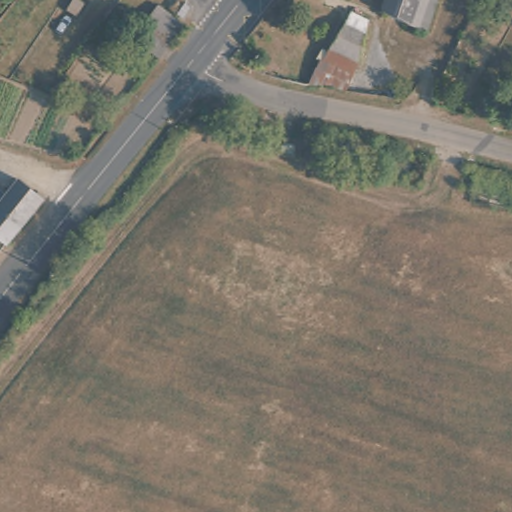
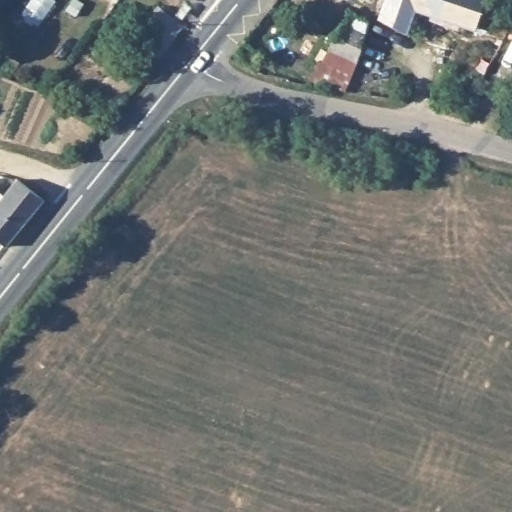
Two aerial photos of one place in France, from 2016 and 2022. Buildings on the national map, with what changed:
unchanged [(388,0),(434,0),(425,25),(385,11),(388,0)]
unchanged [(144,42),(139,47),(130,45),(125,39),(129,31),(140,34),(156,11),(184,29),(164,55),(144,42)]
unchanged [(338,68),(325,88),(310,85),(336,46),(352,13),(366,19),(360,59),(352,75),(338,68)]
unchanged [(0,236),(0,188),(7,193),(22,176),(50,195),(11,244),(0,236)]

